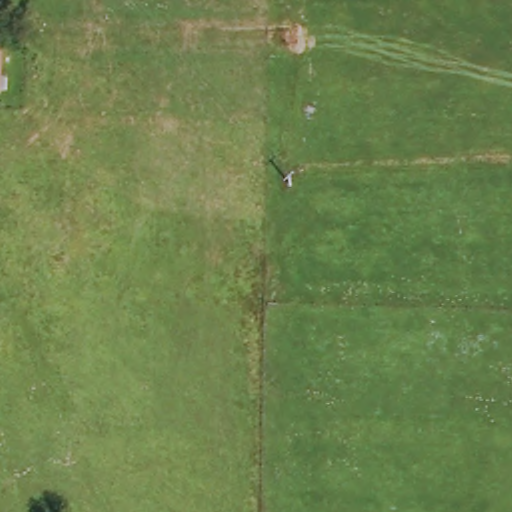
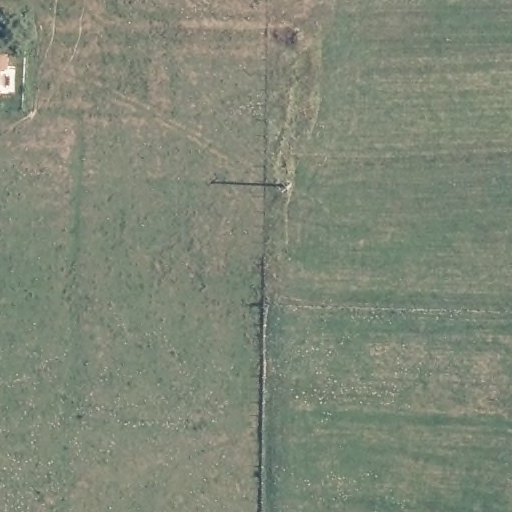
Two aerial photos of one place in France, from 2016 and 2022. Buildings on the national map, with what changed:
unchanged [(0,100),(0,56),(3,56),(0,100)]

